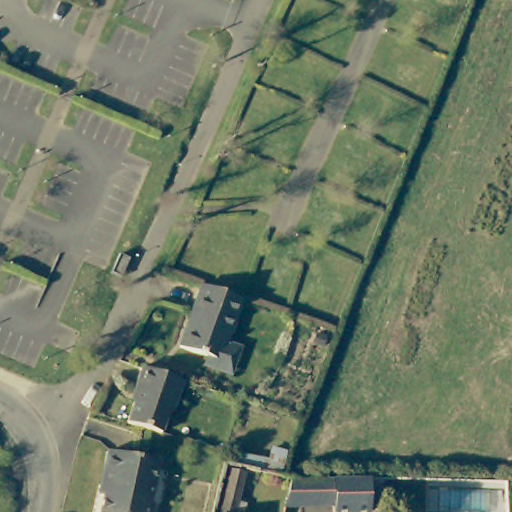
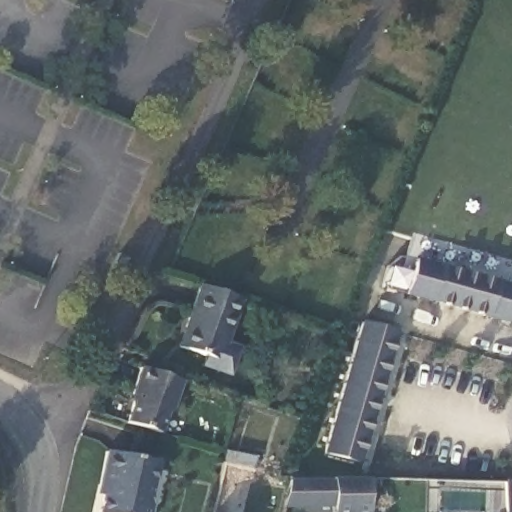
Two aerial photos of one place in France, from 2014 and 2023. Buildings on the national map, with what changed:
new [(414,261),(384,252),(391,231),(411,237),(412,233),(512,260),(512,322),(512,324),(408,293),(414,261)]
unchanged [(124,257),(116,275),(107,271),(114,254),(124,257)]
unchanged [(202,284),(242,296),(234,321),(194,308),(202,284)]
unchanged [(234,372),(206,364),(209,353),(183,345),(194,308),(234,321),(228,339),(243,343),(234,372)]
new [(361,320),(401,331),(364,464),(323,453),(361,320)]
unchanged [(139,399),(136,394),(144,368),(185,382),(177,411),(170,415),(164,434),(131,423),(139,399)]
unchanged [(229,448),(285,462),(281,472),(227,458),(229,449),(229,448)]
unchanged [(151,506),(150,512),(99,512),(104,486),(99,485),(104,456),(105,450),(156,461),(155,470),(149,498),(151,506)]
unchanged [(328,478),(368,478),(367,512),(333,512),(333,507),(343,507),(343,504),(349,504),(342,481),(333,481),(328,481),(328,478)]
unchanged [(343,504),(343,507),(282,506),(288,480),(297,482),(342,481),(349,504),(343,504)]

